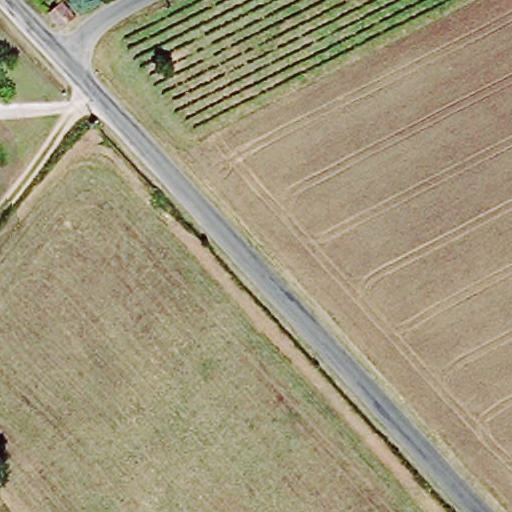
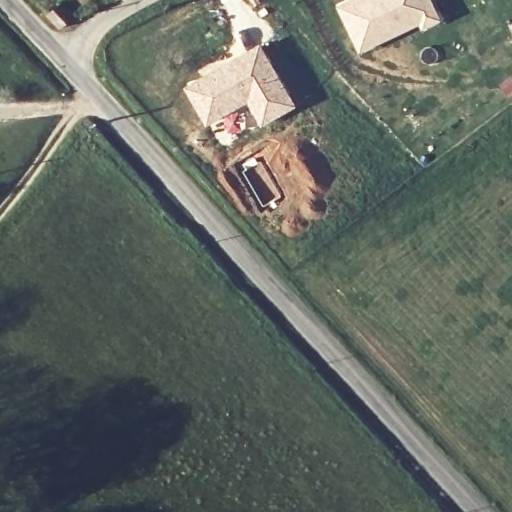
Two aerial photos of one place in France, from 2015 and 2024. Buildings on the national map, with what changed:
new [(359,49),(338,5),(349,0),(431,0),(440,19),(422,26),(421,21),(388,36),(359,49)]
unchanged [(59,26),(50,16),(64,6),(76,20),(59,26)]
new [(262,41),(300,105),(259,127),(246,107),(207,127),(182,86),(262,41)]

